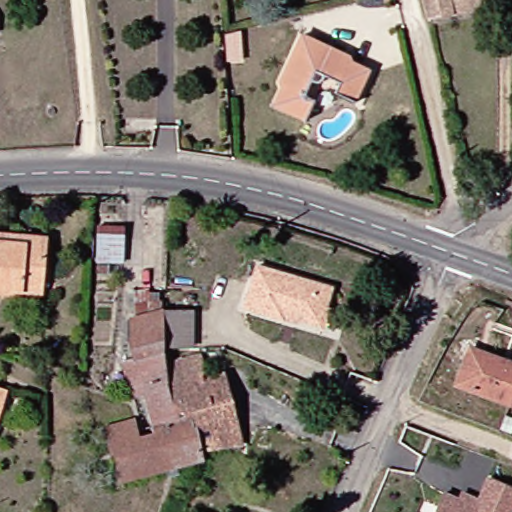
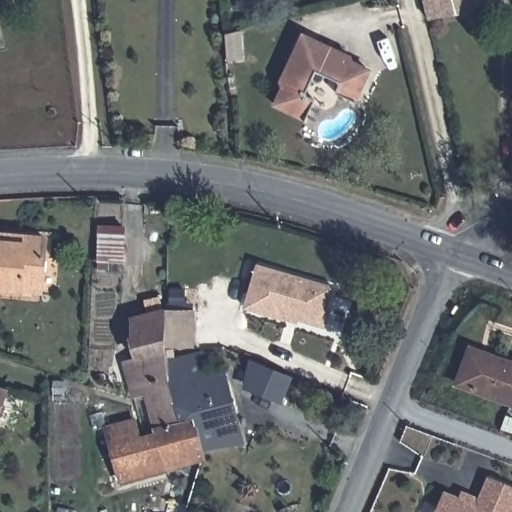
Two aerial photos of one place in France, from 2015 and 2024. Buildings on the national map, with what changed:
unchanged [(497,5),(481,9),(428,20),(423,0),(496,0),(497,5)]
unchanged [(345,57),(347,63),(364,70),(349,102),(329,93),(333,85),(332,82),(321,77),(318,78),(318,79),(317,80),(317,81),(316,81),(316,82),(315,82),(314,83),(313,83),(312,83),(311,83),(310,83),(309,83),(308,82),(305,82),(300,93),(301,96),(309,100),(301,119),(269,105),(277,88),(275,82),(297,35),(345,57)]
unchanged [(0,230),(12,231),(18,231),(40,233),(36,272),(35,287),(15,286),(0,285),(0,230)]
unchanged [(123,262),(97,261),(97,237),(123,237),(123,262)]
unchanged [(320,326),(284,315),(282,320),(246,308),(257,266),(332,289),(320,326)]
unchanged [(118,361),(130,359),(124,338),(126,337),(126,318),(131,317),(129,292),(144,291),(148,304),(157,302),(158,329),(159,329),(159,350),(162,364),(163,381),(161,381),(173,422),(148,429),(148,427),(139,395),(128,398),(118,361)]
unchanged [(160,311),(188,311),(188,346),(160,346),(160,311)]
unchanged [(467,355),(469,348),(506,362),(512,364),(512,397),(509,404),(456,384),(467,355)]
unchanged [(173,422),(161,381),(163,381),(162,364),(163,363),(195,355),(201,378),(217,374),(230,419),(237,444),(195,450),(187,418),(173,422)]
new [(250,360),(292,377),(281,403),(239,386),(250,360)]
unchanged [(0,406),(0,390),(4,392),(0,406)]
unchanged [(509,404),(512,397),(512,405),(509,404)]
unchanged [(115,482),(100,428),(129,420),(134,439),(150,435),(148,429),(173,422),(187,418),(195,450),(197,459),(183,464),(132,477),(115,482)]
unchanged [(437,512),(444,494),(460,500),(462,495),(478,502),(488,478),(512,488),(512,512),(437,512)]

